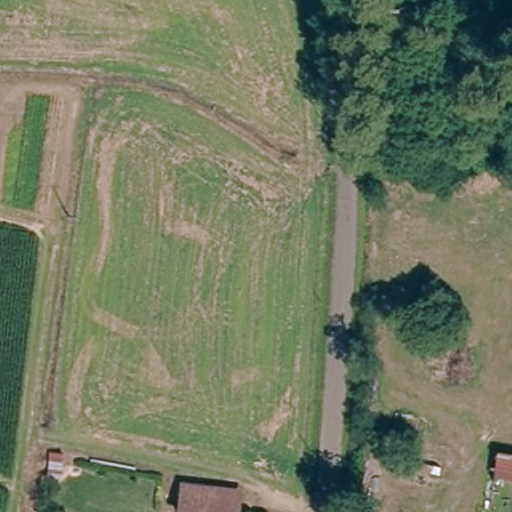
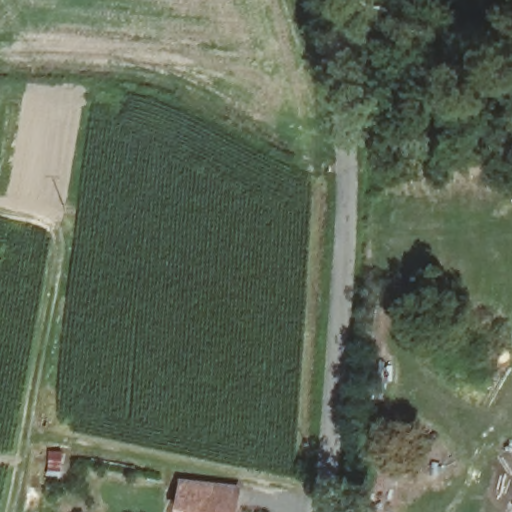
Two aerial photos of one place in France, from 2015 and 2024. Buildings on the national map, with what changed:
unchanged [(234,482),(231,510),(187,506),(177,505),(180,478),(234,482)]
unchanged [(231,510),(231,512),(187,512),(187,506),(231,510)]

